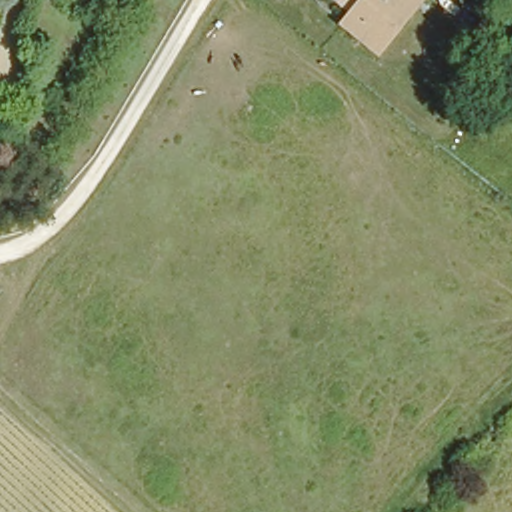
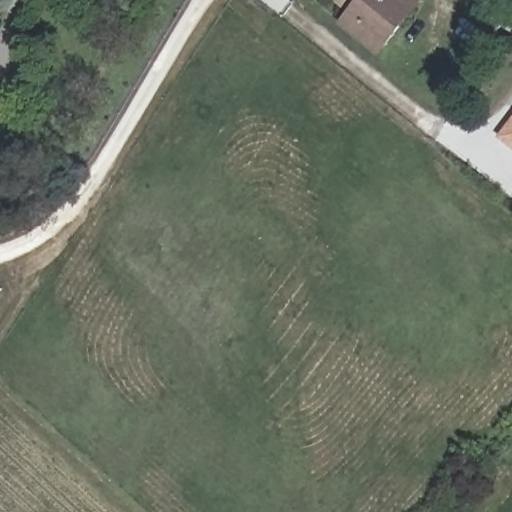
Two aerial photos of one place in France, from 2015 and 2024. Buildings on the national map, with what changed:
unchanged [(344,26),(337,22),(355,0),(415,0),(396,25),(377,50),(344,26)]
new [(497,135),(512,115),(512,148),(509,146),(497,135)]

